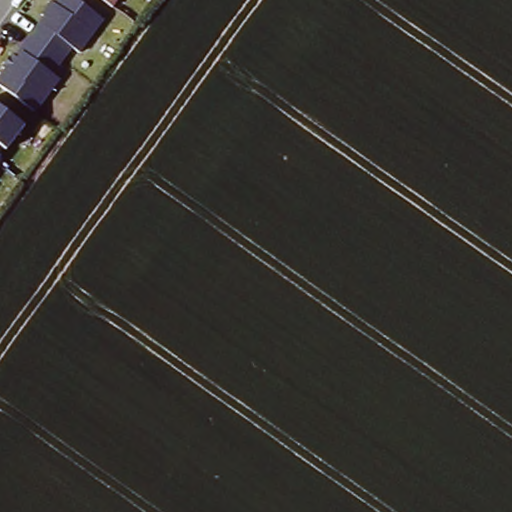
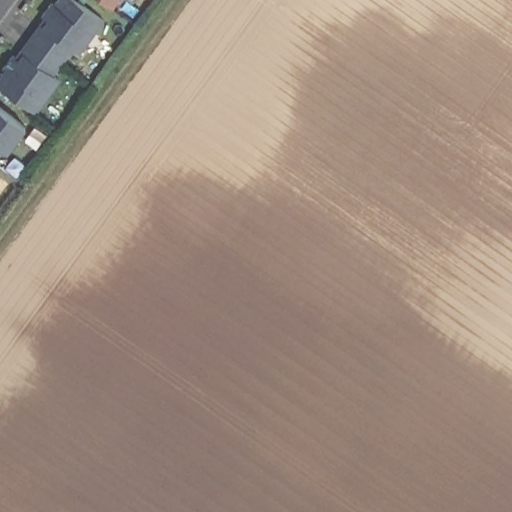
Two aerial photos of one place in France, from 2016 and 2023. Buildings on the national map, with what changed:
unchanged [(104,17),(80,51),(73,47),(55,71),(61,76),(35,112),(0,89),(0,72),(55,0),(81,0),(104,17)]
unchanged [(113,5),(105,0),(117,0),(113,5)]
unchanged [(25,123),(7,148),(5,146),(0,152),(0,104),(25,123)]

